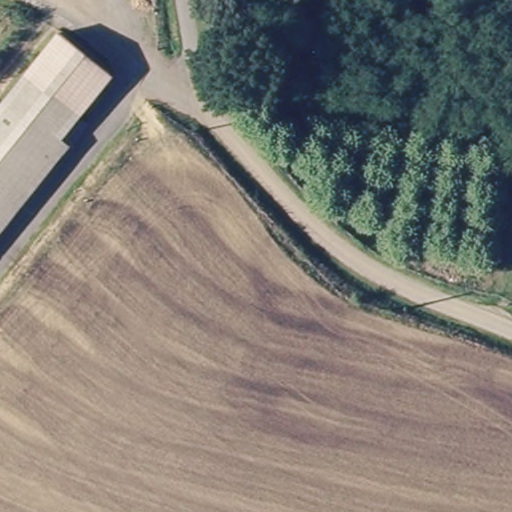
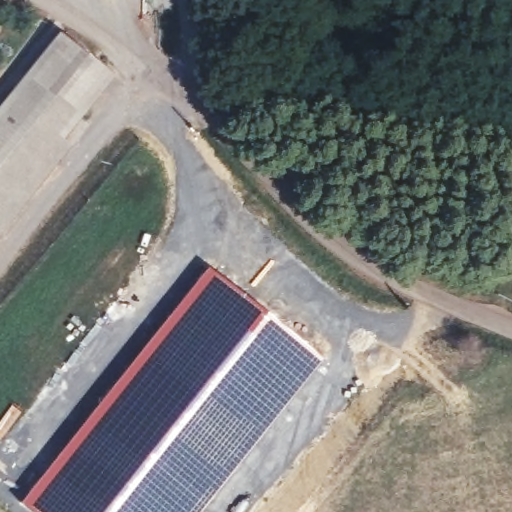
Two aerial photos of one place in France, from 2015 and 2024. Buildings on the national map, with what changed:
unchanged [(63,36),(114,74),(82,114),(31,75),(63,36)]
unchanged [(31,75),(82,114),(62,140),(44,162),(0,128),(0,114),(31,75)]
unchanged [(44,162),(0,219),(0,128),(44,162)]
unchanged [(0,240),(0,219),(44,162),(62,140),(74,149),(56,172),(0,240)]
new [(208,265),(255,299),(323,359),(202,512),(32,512),(19,502),(208,265)]

